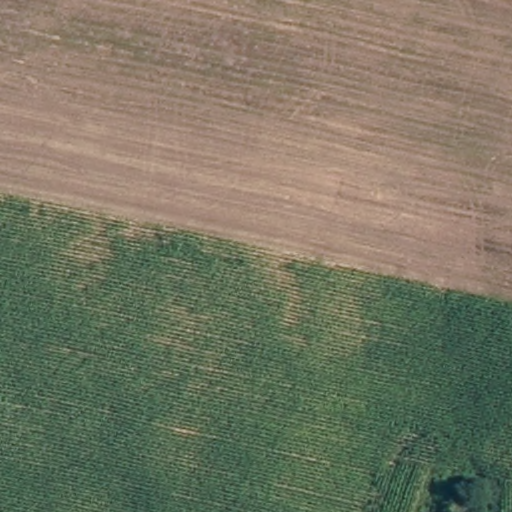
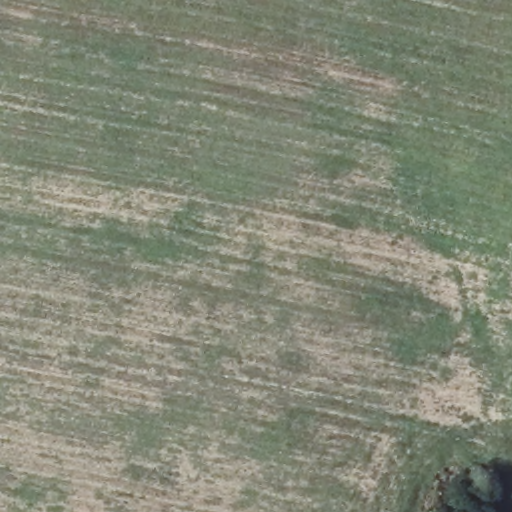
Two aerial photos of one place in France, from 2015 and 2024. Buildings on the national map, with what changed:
[]

